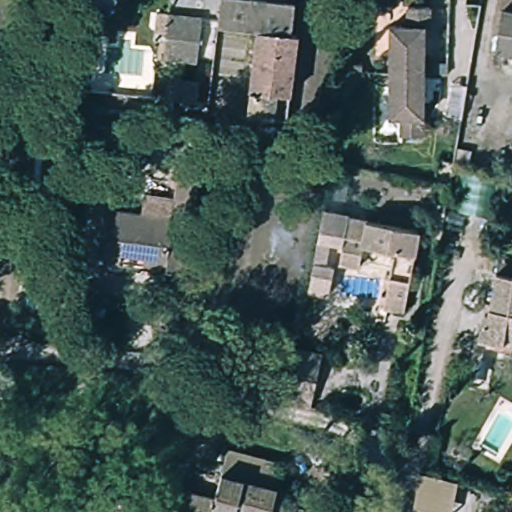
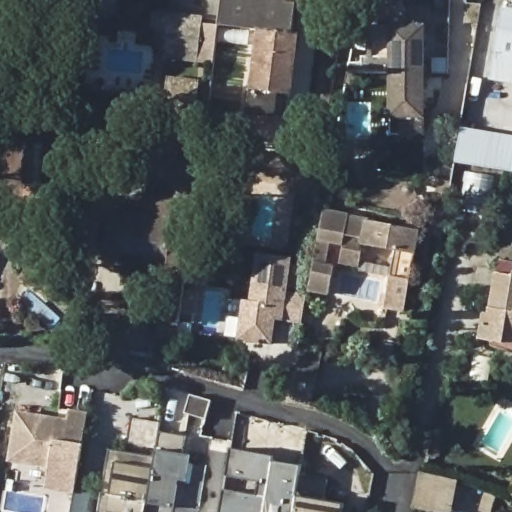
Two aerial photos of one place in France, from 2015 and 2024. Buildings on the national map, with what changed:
unchanged [(95,19),(97,0),(110,0),(108,21),(95,19)]
unchanged [(223,26),(226,8),(226,0),(260,0),(297,5),(294,34),(301,35),(291,120),(252,116),(262,31),(223,26)]
new [(502,7),(512,9),(512,85),(489,81),(502,7)]
unchanged [(397,27),(414,28),(414,9),(435,9),(435,29),(429,29),(428,74),(420,74),(395,73),(397,27)]
demolished [(501,15),(512,17),(512,59),(495,56),(501,15)]
unchanged [(198,24),(193,63),(164,59),(170,20),(198,24)]
unchanged [(349,62),(362,63),(362,73),(362,83),(345,83),(348,73),(349,62)]
unchanged [(420,74),(428,74),(427,135),(405,135),(405,116),(394,116),(395,73),(420,74)]
new [(512,139),(512,173),(454,163),(459,130),(512,139)]
unchanged [(23,186),(25,145),(26,141),(28,138),(31,136),(36,134),(44,134),(48,136),(51,140),(52,144),(53,148),(51,187),(23,186)]
unchanged [(196,236),(176,233),(174,248),(194,251),(184,322),(184,327),(155,323),(158,303),(166,304),(171,270),(148,267),(149,261),(150,258),(126,254),(125,263),(108,260),(116,209),(179,218),(198,220),(196,236)]
unchanged [(434,235),(419,317),(398,313),(409,256),(378,250),(374,272),(355,269),(359,248),(345,245),(341,269),(350,270),(345,297),(325,294),(340,213),(364,218),(360,240),(377,243),(380,225),(434,235)]
new [(292,257),(287,291),(307,294),(302,324),(276,320),(273,344),(238,339),(242,298),(249,300),(256,251),(292,257)]
unchanged [(485,317),(489,318),(495,278),(512,280),(512,350),(480,344),(485,317)]
unchanged [(297,349),(321,354),(311,407),(287,403),(297,349)]
unchanged [(204,400),(212,403),(207,421),(185,415),(191,397),(204,400)]
new [(16,410),(66,419),(69,409),(89,413),(82,444),(85,445),(75,494),(46,489),(48,469),(7,463),(16,410)]
new [(199,509),(173,507),(172,512),(98,512),(109,450),(156,459),(158,452),(127,446),(132,418),(160,423),(159,432),(185,437),(182,454),(190,456),(189,466),(205,468),(199,509)]
demolished [(303,460),(288,512),(282,512),(279,511),(278,512),(199,512),(207,487),(235,495),(248,445),(303,460)]
new [(325,481),(323,501),(343,504),(342,512),(220,512),(224,490),(258,496),(260,481),(227,476),(231,450),(274,458),(273,462),(300,467),(299,476),(325,481)]
unchanged [(450,512),(423,512),(410,509),(419,470),(457,480),(450,512)]

